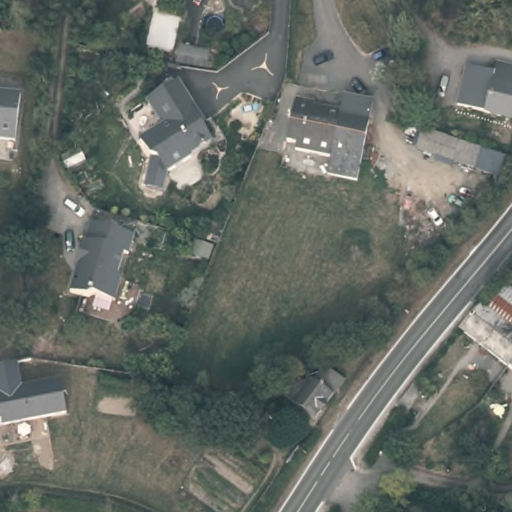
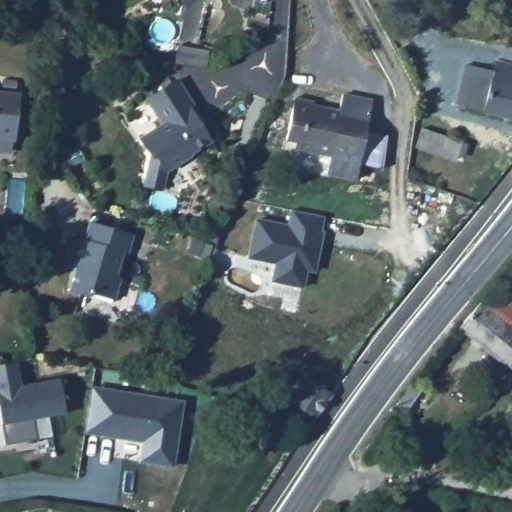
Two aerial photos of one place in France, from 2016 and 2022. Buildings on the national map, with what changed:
unchanged [(455,107),(463,74),(491,80),(493,68),(512,72),(512,119),(485,113),(455,107)]
unchanged [(176,83),(180,80),(181,83),(199,110),(195,113),(212,140),(194,151),(193,157),(169,173),(160,159),(153,158),(141,140),(164,125),(148,101),(176,83)]
unchanged [(369,100),(359,179),(329,176),(332,158),(295,154),(295,149),(286,147),(291,102),(311,104),(311,107),(337,110),(339,96),(369,100)]
unchanged [(14,145),(0,144),(0,97),(19,98),(14,145)]
unchanged [(415,148),(422,128),(506,155),(499,175),(415,148)]
new [(274,264),(247,258),(256,217),(288,223),(290,209),(325,215),(321,232),(323,232),(315,272),(307,270),(304,288),(270,281),(274,264)]
unchanged [(134,234),(128,252),(123,251),(116,271),(119,277),(111,299),(90,291),(85,294),(68,288),(79,255),(76,254),(83,236),(85,237),(91,219),(134,234)]
unchanged [(458,333),(512,265),(512,376),(458,333)]
unchanged [(0,364),(19,360),(24,386),(63,379),(68,413),(3,425),(0,410),(0,364)]
unchanged [(276,408),(293,392),(301,385),(317,375),(332,381),(326,395),(312,425),(276,408)]
new [(93,386),(184,399),(174,467),(138,461),(141,443),(86,433),(93,386)]

